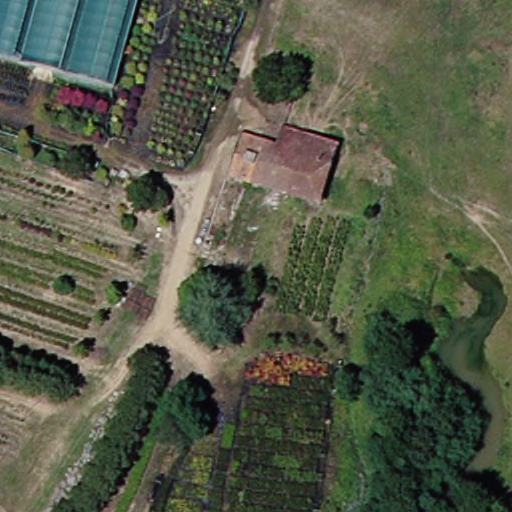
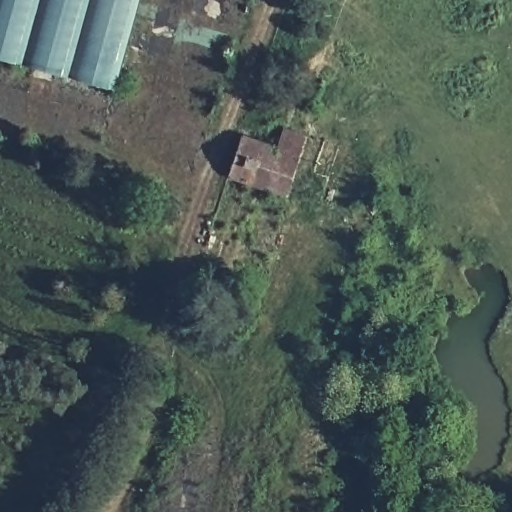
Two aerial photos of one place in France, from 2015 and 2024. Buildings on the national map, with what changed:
unchanged [(117,86),(0,54),(0,0),(141,0),(117,86)]
unchanged [(240,141),(275,152),(281,132),(305,140),(288,197),(228,178),(240,141)]
unchanged [(339,151),(322,207),(288,197),(305,140),(339,151)]

